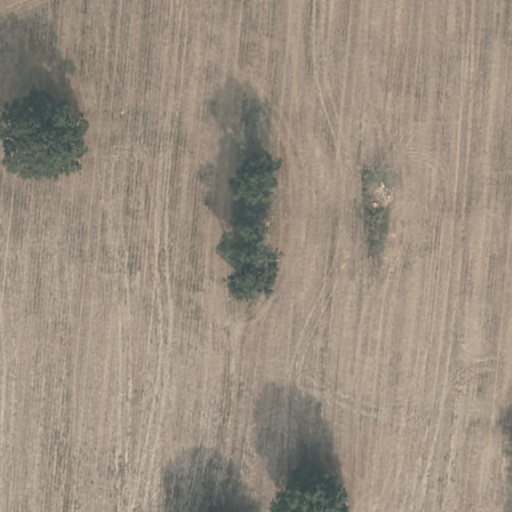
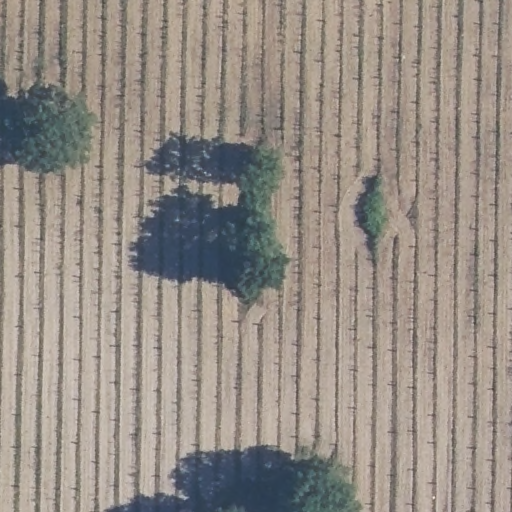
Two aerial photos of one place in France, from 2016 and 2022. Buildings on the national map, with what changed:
[]

